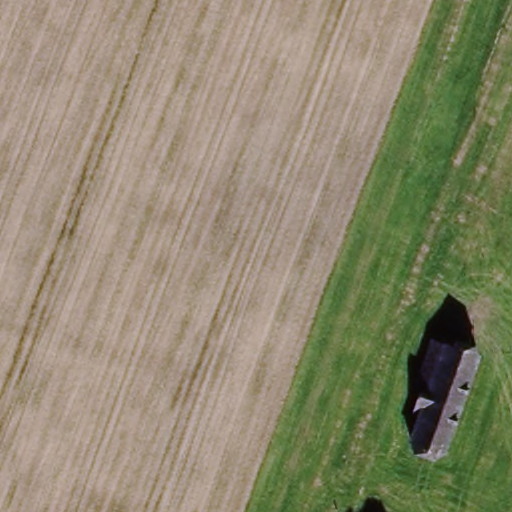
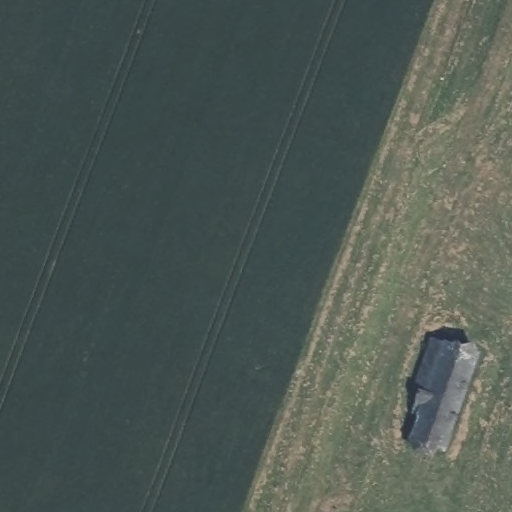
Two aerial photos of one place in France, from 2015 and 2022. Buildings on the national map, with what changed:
unchanged [(443,463),(410,446),(432,402),(421,396),(444,350),(456,356),(490,373),(443,463)]

